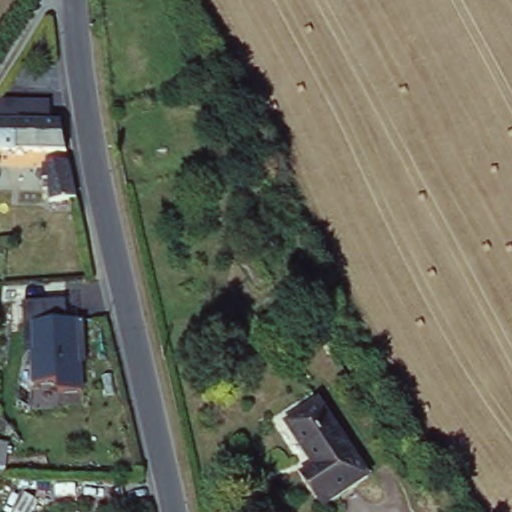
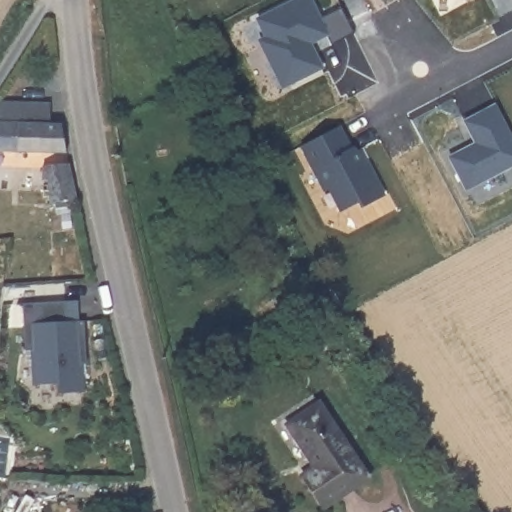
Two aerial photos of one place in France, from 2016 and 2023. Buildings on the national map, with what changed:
new [(332,45),(327,35),(310,42),(322,67),(296,81),(283,57),(271,62),(260,41),(267,37),(258,19),(296,0),(312,0),(321,17),(342,7),(356,33),(332,45)]
unchanged [(7,90),(50,104),(44,126),(58,129),(66,159),(0,143),(0,104),(7,90)]
new [(512,166),(467,190),(450,157),(470,146),(472,148),(478,146),(465,121),(497,105),(512,133),(512,166)]
new [(340,127),(352,149),(354,147),(370,179),(375,176),(385,196),(362,207),(359,202),(342,211),(330,188),(326,191),(302,146),(340,127)]
unchanged [(77,195),(50,204),(41,170),(67,162),(77,195)]
unchanged [(67,302),(68,321),(84,321),(87,365),(84,365),(85,390),(58,391),(57,383),(32,385),(30,352),(25,352),(24,303),(67,302)]
unchanged [(317,399),(367,474),(321,506),(303,475),(312,469),(284,422),(317,399)]
demolished [(3,449),(3,482),(0,482),(0,449),(3,449)]

